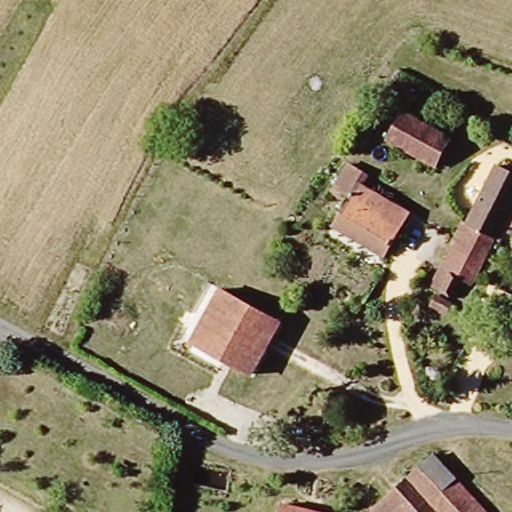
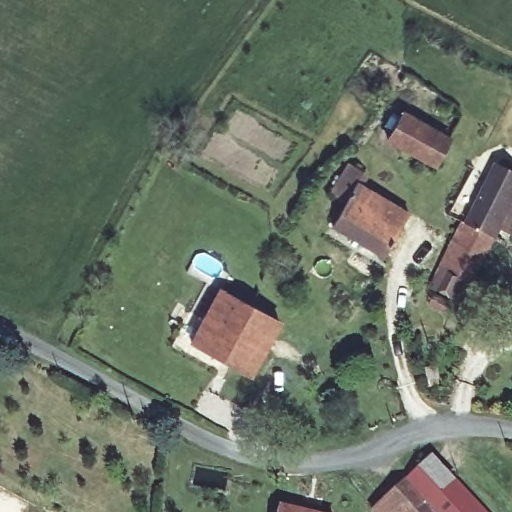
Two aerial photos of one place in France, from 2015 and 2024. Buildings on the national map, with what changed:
unchanged [(449,139),(433,163),(389,137),(405,112),(449,139)]
unchanged [(467,222),(507,147),(512,150),(512,203),(479,265),(458,300),(431,285),(462,222),(467,222)]
unchanged [(332,192),(342,174),(391,201),(409,211),(402,225),(383,254),(332,223),(345,200),(332,192)]
unchanged [(248,375),(190,341),(220,289),(250,305),(279,322),(248,375)]
unchanged [(453,305),(447,316),(435,308),(440,298),(453,305)]
unchanged [(437,455),(489,512),(379,512),(377,510),(437,455)]
unchanged [(332,511),(331,512),(279,512),(283,497),(332,511)]

